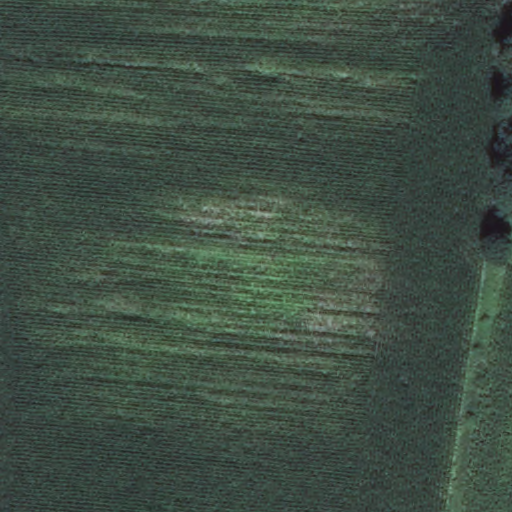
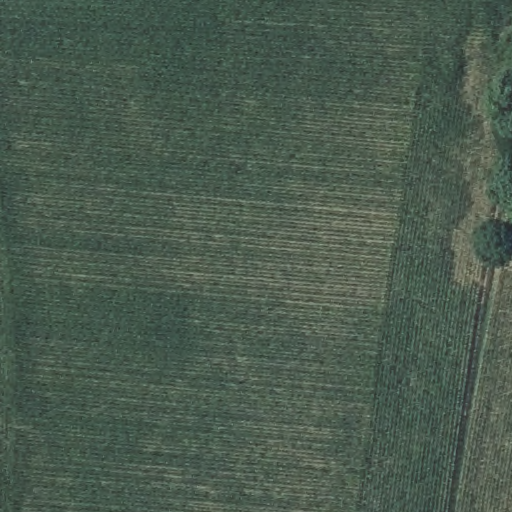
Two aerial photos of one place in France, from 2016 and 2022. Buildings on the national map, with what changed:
[]

